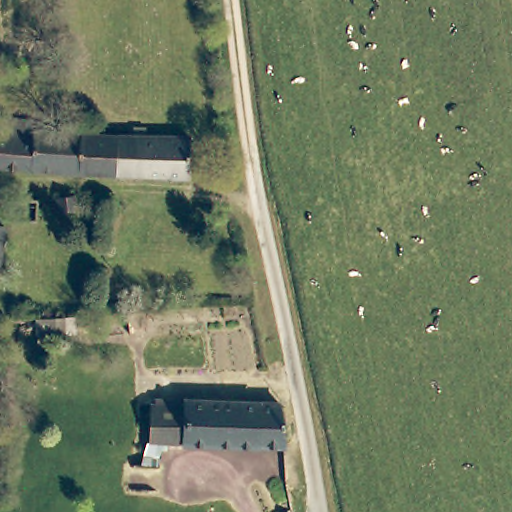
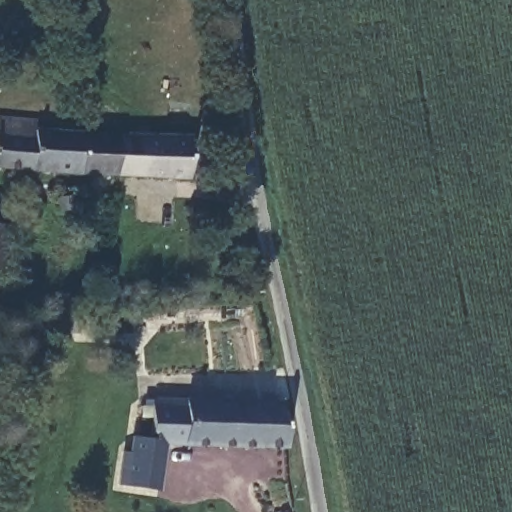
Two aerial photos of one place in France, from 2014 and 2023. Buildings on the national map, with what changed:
unchanged [(0,168),(0,121),(31,122),(31,129),(111,133),(110,173),(0,168)]
unchanged [(185,177),(110,173),(111,133),(184,136),(185,177)]
unchanged [(4,226),(0,257),(0,225),(4,226)]
unchanged [(151,399),(281,402),(285,449),(152,441),(151,399)]
new [(115,487),(121,448),(130,449),(132,433),(152,435),(152,441),(166,442),(158,492),(115,487)]

